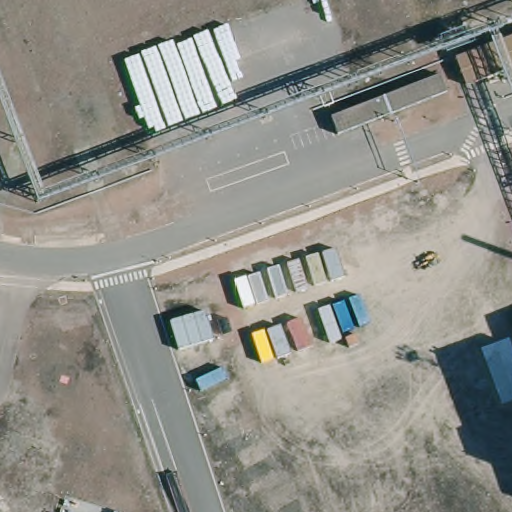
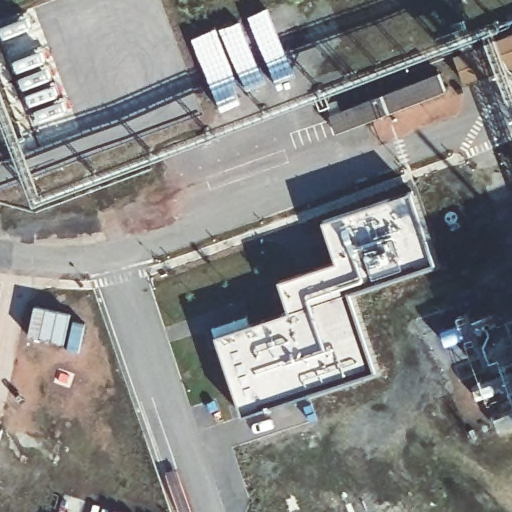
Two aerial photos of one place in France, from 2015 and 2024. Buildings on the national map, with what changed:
unchanged [(455,54),(512,33),(512,63),(468,80),(455,54)]
new [(216,335),(291,310),(280,279),(337,260),(323,220),(412,191),(436,263),(350,291),(377,371),(244,414),(216,335)]
new [(3,430),(0,440),(0,429),(3,430)]

